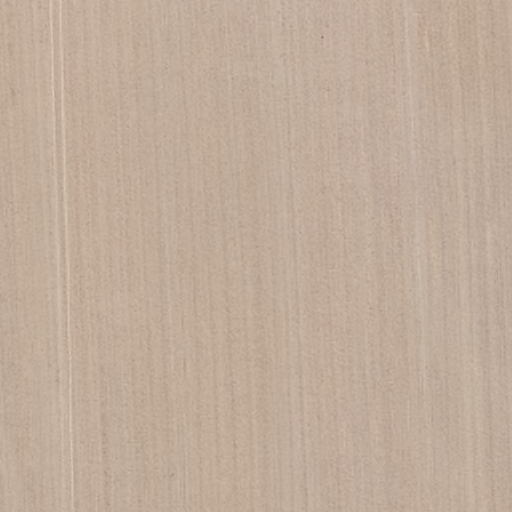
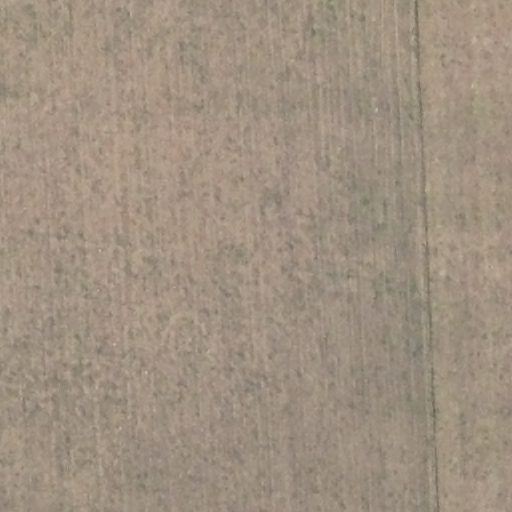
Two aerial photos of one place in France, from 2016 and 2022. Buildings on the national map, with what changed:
[]

